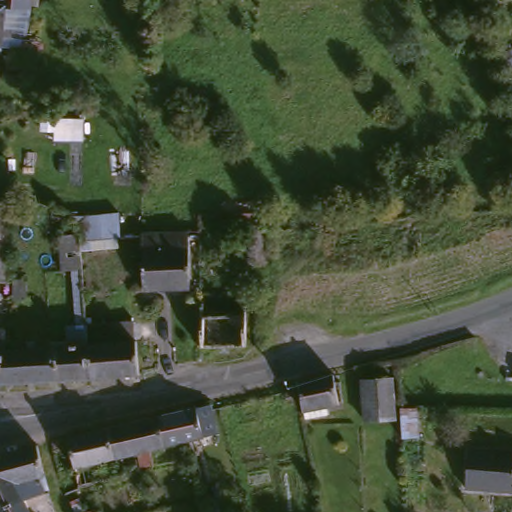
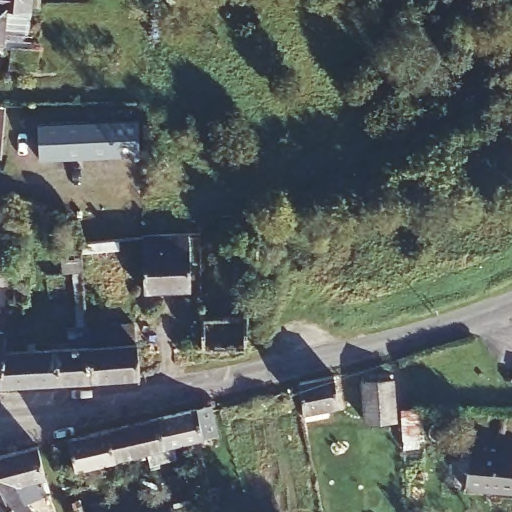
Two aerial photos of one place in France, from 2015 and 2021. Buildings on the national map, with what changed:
unchanged [(36,48),(33,70),(2,64),(4,48),(0,47),(0,0),(27,0),(22,45),(36,48)]
demolished [(173,103),(174,134),(146,136),(145,105),(173,103)]
new [(138,117),(139,153),(40,158),(38,121),(138,117)]
unchanged [(0,195),(5,195),(8,196),(6,279),(0,279),(0,195)]
unchanged [(83,232),(83,211),(116,210),(118,238),(82,239),(86,321),(71,322),(69,269),(59,269),(57,232),(83,232)]
unchanged [(211,239),(210,224),(243,224),(265,224),(266,235),(266,239),(211,239)]
unchanged [(186,286),(141,288),(139,233),(159,231),(183,230),(186,286)]
unchanged [(16,278),(28,279),(26,299),(15,299),(16,278)]
unchanged [(246,290),(246,345),(203,347),(202,290),(246,290)]
unchanged [(141,371),(91,375),(59,378),(58,343),(71,342),(71,322),(86,321),(90,321),(134,319),(136,339),(138,339),(141,371)]
unchanged [(0,327),(8,328),(7,339),(4,381),(0,381),(0,327)]
unchanged [(7,339),(26,338),(27,345),(58,343),(59,378),(4,381),(7,339)]
unchanged [(331,380),(335,379),(339,400),(301,407),(296,387),(295,381),(329,373),(331,380)]
unchanged [(358,377),(381,374),(386,414),(361,417),(358,377)]
unchanged [(408,428),(394,429),(391,404),(406,405),(408,428)]
unchanged [(158,417),(211,405),(218,434),(212,436),(214,445),(201,448),(198,439),(165,447),(158,417)]
unchanged [(108,429),(158,417),(165,447),(116,459),(108,429)]
unchanged [(69,438),(108,429),(116,459),(75,468),(69,438)]
unchanged [(41,473),(33,476),(11,476),(0,458),(0,449),(33,441),(41,473)]
unchanged [(469,448),(512,453),(512,493),(465,488),(469,448)]
unchanged [(38,478),(40,484),(0,504),(0,458),(11,476),(33,476),(41,473),(43,476),(38,478)]
unchanged [(45,488),(54,512),(0,512),(0,504),(40,484),(41,487),(45,488)]

